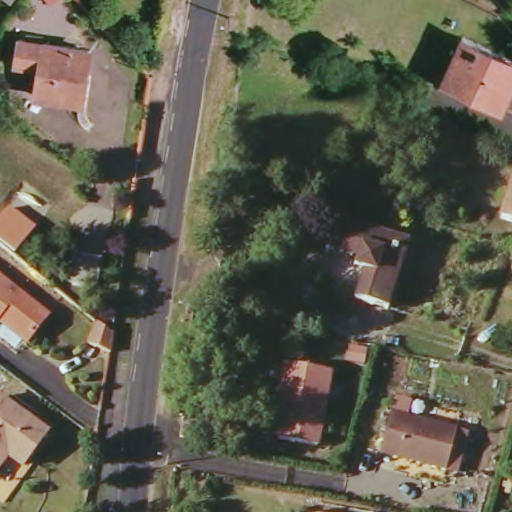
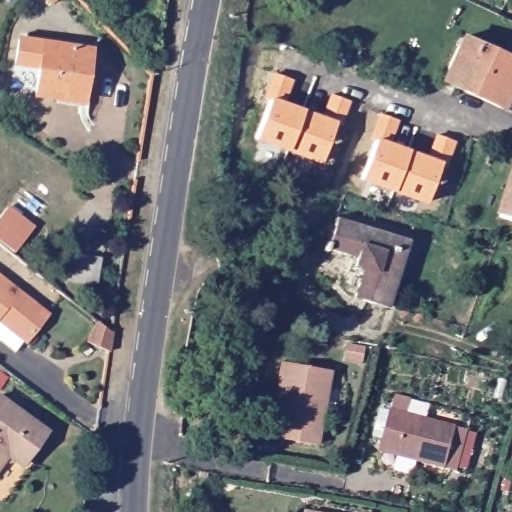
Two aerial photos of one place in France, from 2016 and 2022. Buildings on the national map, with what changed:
unchanged [(59,0),(50,9),(43,0),(59,0)]
unchanged [(458,35),(512,60),(512,61),(494,103),(437,77),(458,35)]
unchanged [(21,42),(87,51),(80,100),(36,94),(39,71),(16,67),(21,42)]
new [(271,102),(268,102),(277,77),(293,82),(284,107),(325,121),(334,96),(349,102),(341,126),(336,125),(323,163),(259,141),(271,102)]
new [(379,141),(374,140),(383,115),(399,121),(390,145),(432,160),(440,135),(456,142),(447,165),(443,164),(429,202),(364,178),(379,141)]
unchanged [(512,177),(512,225),(496,219),(512,177)]
unchanged [(14,252),(0,241),(0,220),(9,207),(35,227),(14,252)]
unchanged [(326,247),(335,219),(402,238),(381,307),(348,296),(357,267),(349,265),(351,254),(326,247)]
unchanged [(74,254),(99,256),(96,285),(71,281),(74,254)]
unchanged [(24,338),(0,318),(0,277),(45,311),(24,338)]
unchanged [(96,323),(111,335),(108,353),(94,351),(96,323)]
unchanged [(284,392),(275,376),(283,362),(331,372),(314,447),(274,438),(284,392)]
unchanged [(18,467),(4,456),(0,461),(0,395),(44,434),(18,467)]
unchanged [(388,406),(464,428),(453,470),(376,446),(388,406)]

